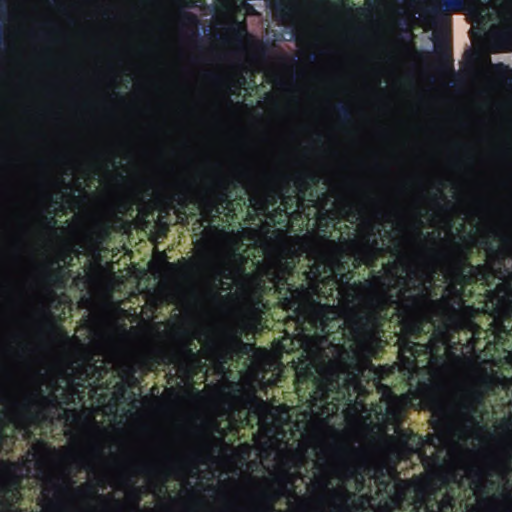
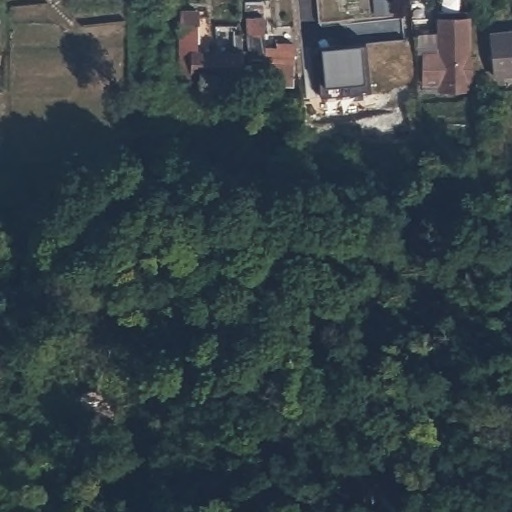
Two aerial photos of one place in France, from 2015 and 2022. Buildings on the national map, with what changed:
unchanged [(64,0),(80,0),(64,1),(64,0)]
unchanged [(279,49),(280,44),(295,44),(295,67),(292,67),(291,77),(293,77),(294,89),(275,89),(275,78),(267,77),(266,84),(251,84),(250,57),(248,17),(248,5),(264,5),(265,17),(266,49),(279,49)]
unchanged [(199,8),(199,51),(237,52),(238,33),(245,34),(244,54),(242,89),(230,89),(229,102),(202,100),(203,74),(195,73),(195,84),(183,83),(182,7),(199,8)]
unchanged [(472,14),(473,58),(457,57),(457,55),(427,54),(418,53),(417,33),(437,33),(437,15),(472,14)]
unchanged [(495,77),(490,32),(512,30),(512,75),(495,77)]
new [(320,49),(366,42),(369,70),(367,73),(370,94),(323,97),(318,99),(312,50),(320,49)]
unchanged [(473,79),(457,78),(455,84),(427,83),(427,54),(457,55),(457,57),(473,58),(473,79)]
unchanged [(495,86),(489,89),(483,78),(490,75),(495,86)]

